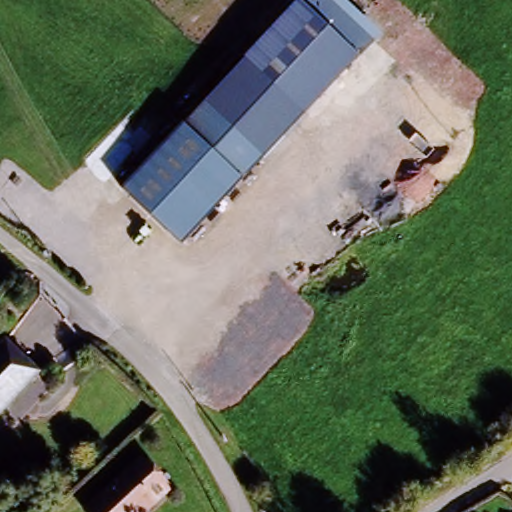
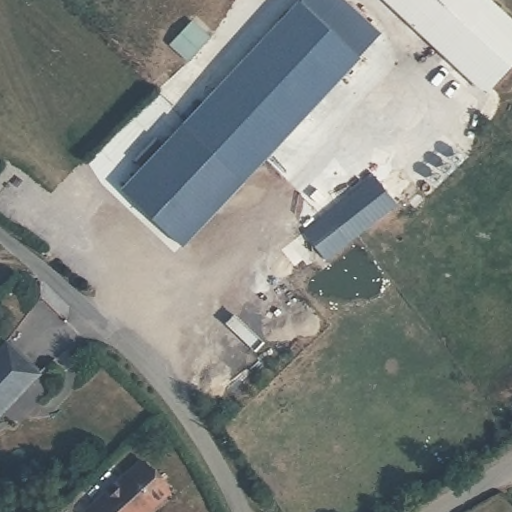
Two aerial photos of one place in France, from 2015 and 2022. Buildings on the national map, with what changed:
unchanged [(121,186),(296,0),(304,0),(358,50),(180,241),(121,186)]
new [(362,55),(358,50),(304,0),(347,0),(383,33),(362,55)]
new [(512,67),(486,94),(385,0),(494,0),(512,17),(512,67)]
new [(395,200),(325,256),(303,229),(372,174),(395,200)]
unchanged [(36,373),(0,411),(0,349),(5,343),(36,373)]
unchanged [(90,505),(145,456),(173,487),(146,512),(95,512),(90,505)]

